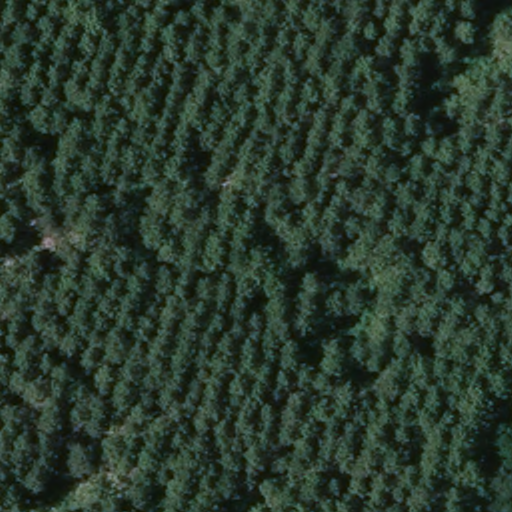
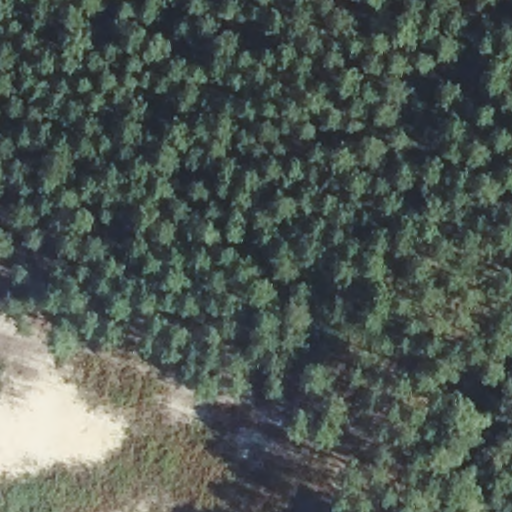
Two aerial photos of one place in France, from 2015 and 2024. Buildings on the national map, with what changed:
[]

